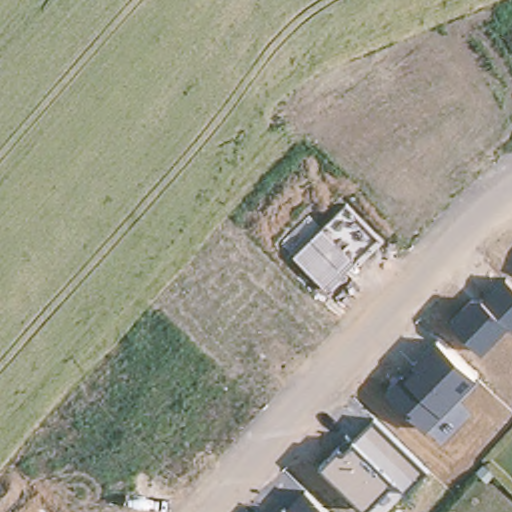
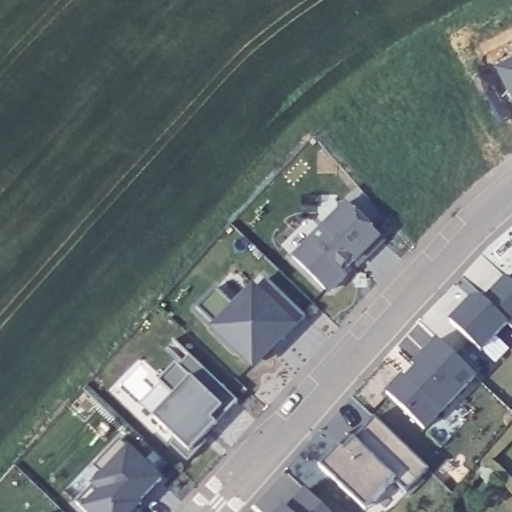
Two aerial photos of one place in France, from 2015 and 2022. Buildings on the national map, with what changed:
unchanged [(295,256),(346,205),(378,238),(342,274),(344,277),(330,290),(295,256)]
new [(306,316),(295,326),(297,327),(255,371),(209,329),(217,320),(197,307),(216,287),(237,300),(252,283),(257,288),(266,278),(306,316)]
unchanged [(450,322),(471,298),(482,297),(484,300),(506,278),(512,284),(512,331),(508,326),(483,352),(450,322)]
unchanged [(426,431),(387,394),(403,378),(407,381),(417,371),(413,367),(438,341),(477,377),(426,431)]
new [(173,397),(158,382),(175,364),(179,368),(189,357),(237,403),(215,425),(215,426),(210,421),(197,434),(207,443),(188,462),(170,445),(175,440),(152,418),(173,397)]
unchanged [(353,497),(322,468),(340,448),(345,452),(354,442),(347,435),(355,441),(375,419),(430,471),(409,494),(397,482),(377,502),(368,512),(353,497)]
new [(164,479),(142,503),(143,504),(135,512),(84,512),(81,510),(76,502),(102,473),(93,467),(120,440),(164,479)]
unchanged [(327,512),(281,512),(285,507),(290,510),(306,492),(327,512)]

